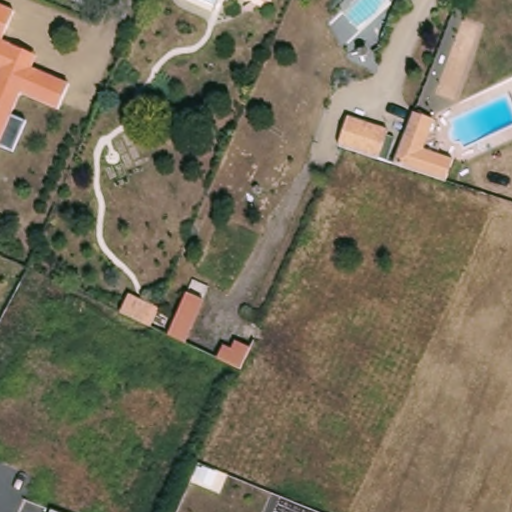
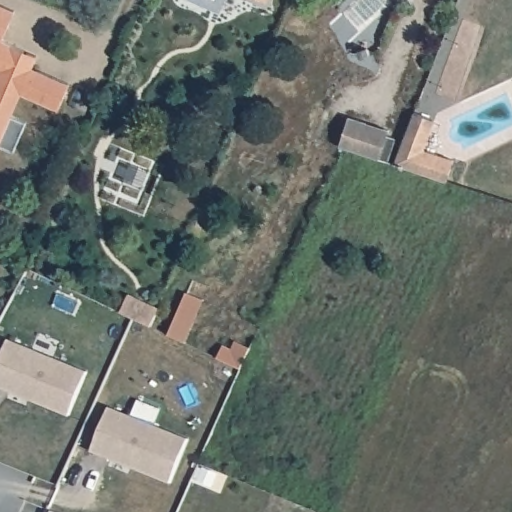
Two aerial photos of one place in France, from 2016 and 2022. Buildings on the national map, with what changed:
unchanged [(1,65),(0,64),(0,6),(14,11),(1,41),(24,51),(36,56),(31,68),(69,84),(59,109),(20,93),(11,115),(26,121),(14,152),(0,146),(0,69),(1,65)]
unchanged [(458,159),(450,180),(398,163),(418,111),(440,120),(428,149),(458,159)]
unchanged [(379,159),(349,149),(340,146),(349,118),(388,130),(379,159)]
new [(186,293),(202,300),(184,343),(168,335),(186,293)]
unchanged [(129,294),(159,308),(150,327),(120,312),(129,294)]
new [(6,338),(85,371),(67,415),(0,387),(0,353),(6,338)]
new [(223,346),(232,350),(235,342),(250,349),(240,369),(217,358),(223,346)]
new [(107,407),(186,440),(167,484),(90,451),(107,407)]
unchanged [(51,510),(56,512),(50,512),(51,510)]

